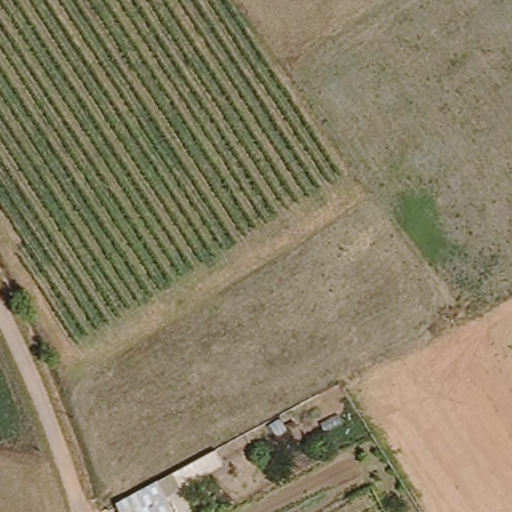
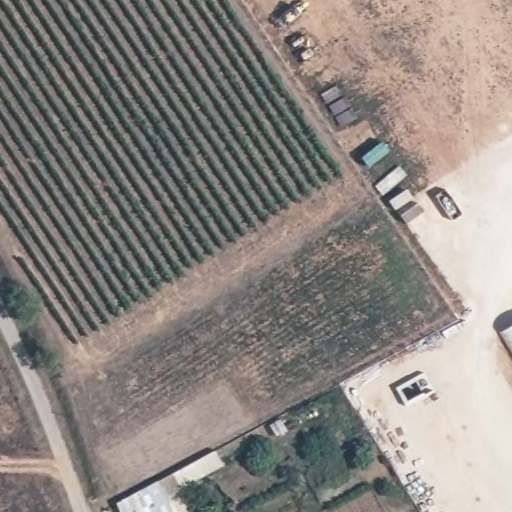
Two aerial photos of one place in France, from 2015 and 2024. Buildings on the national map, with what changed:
new [(501,332),(512,326),(512,351),(501,332)]
unchanged [(172,497),(179,512),(142,512),(172,497)]

